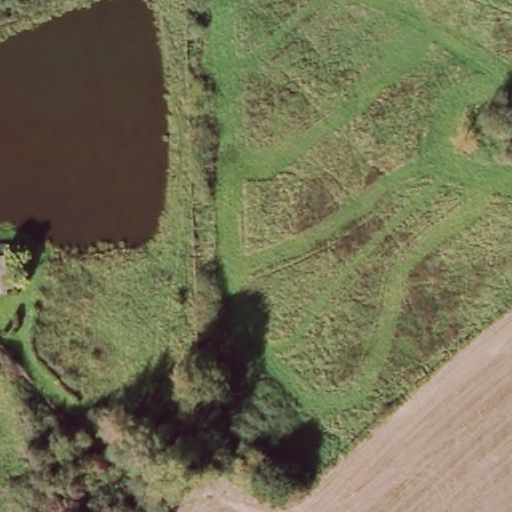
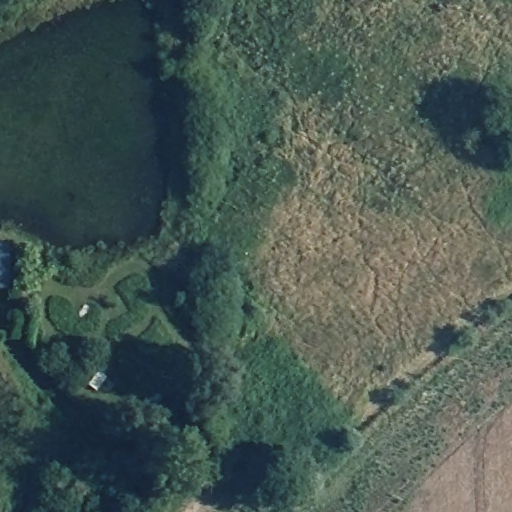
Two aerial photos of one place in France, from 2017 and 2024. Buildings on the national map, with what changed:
unchanged [(0,245),(5,244),(7,257),(7,283),(7,295),(0,295),(0,245)]

